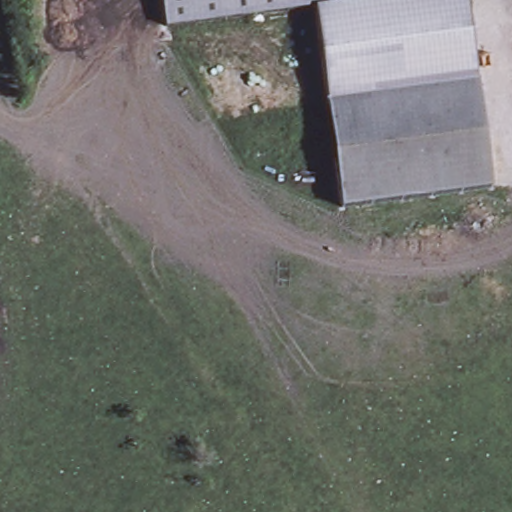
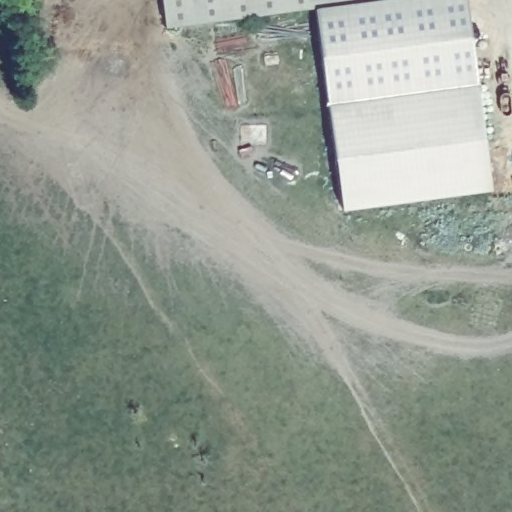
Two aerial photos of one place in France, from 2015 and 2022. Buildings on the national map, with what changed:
unchanged [(231,13),(164,22),(161,0),(229,0),(231,13)]
unchanged [(312,2),(231,13),(229,0),(331,0),(312,2)]
unchanged [(331,0),(464,0),(472,86),(324,106),(312,2),(331,0)]
unchanged [(474,86),(487,190),(338,209),(324,106),(474,86)]

